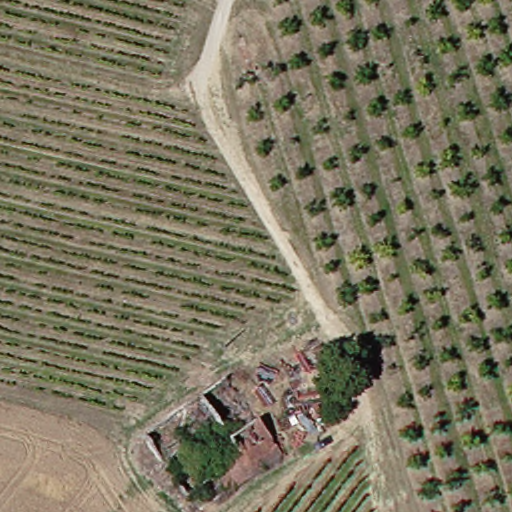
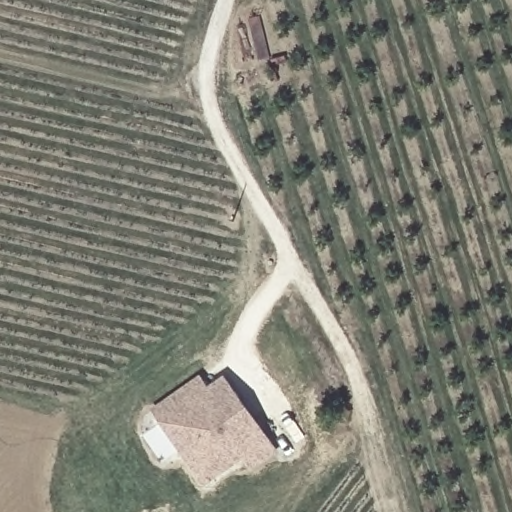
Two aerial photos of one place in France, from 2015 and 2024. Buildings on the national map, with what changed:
new [(207,387),(224,375),(257,419),(238,432),(207,387)]
new [(205,489),(151,408),(199,376),(207,387),(238,432),(257,419),(266,433),(277,448),(249,469),(244,462),(205,489)]

